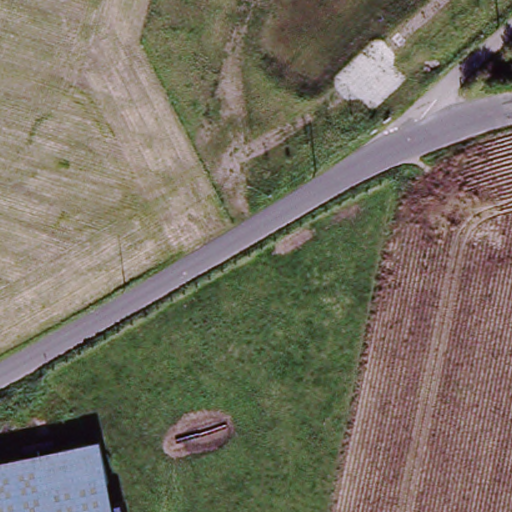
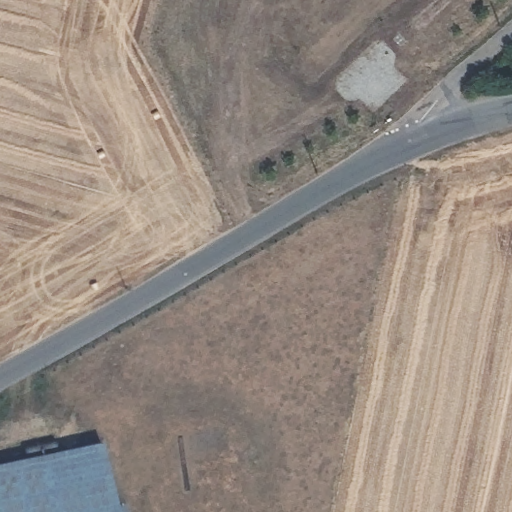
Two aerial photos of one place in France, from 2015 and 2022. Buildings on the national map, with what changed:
unchanged [(115,512),(0,512),(0,463),(100,441),(115,512)]

